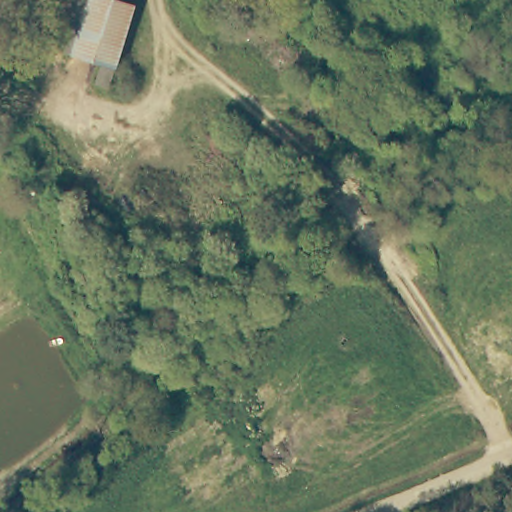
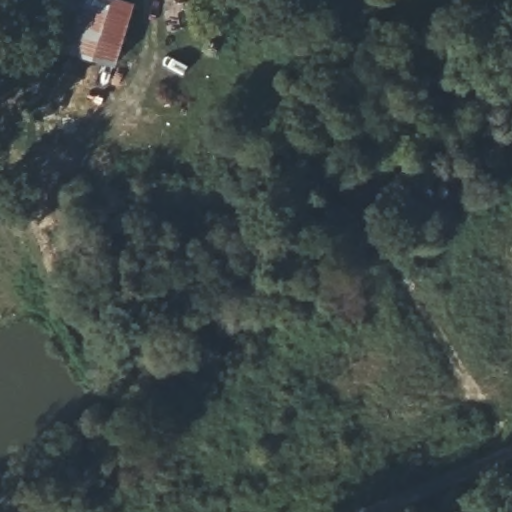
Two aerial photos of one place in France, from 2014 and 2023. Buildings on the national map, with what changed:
unchanged [(82,0),(101,0),(131,8),(114,66),(109,64),(69,49),(82,0)]

